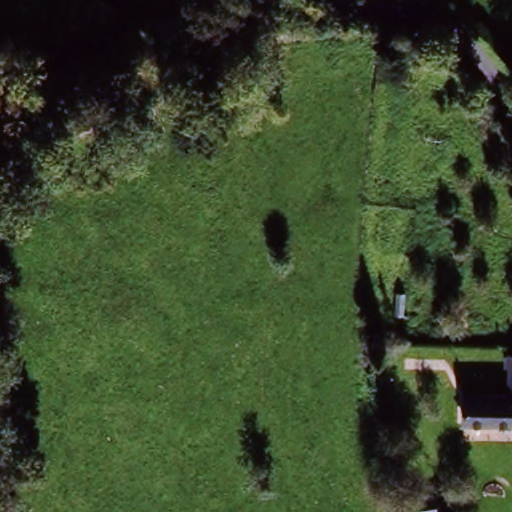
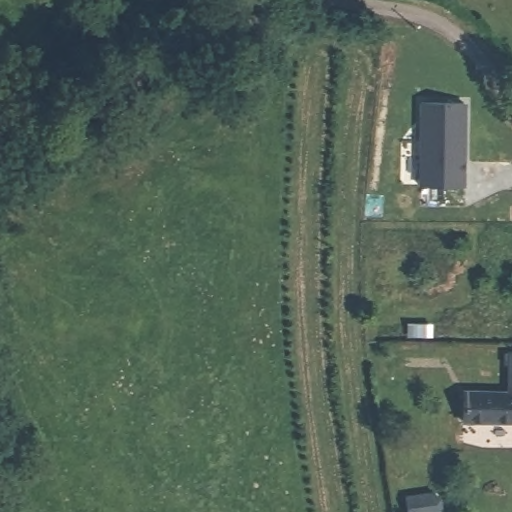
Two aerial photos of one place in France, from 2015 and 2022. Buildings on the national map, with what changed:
new [(469,104),(467,187),(419,186),(419,105),(469,104)]
unchanged [(461,422),(462,393),(509,393),(509,354),(512,354),(512,423),(461,422)]

